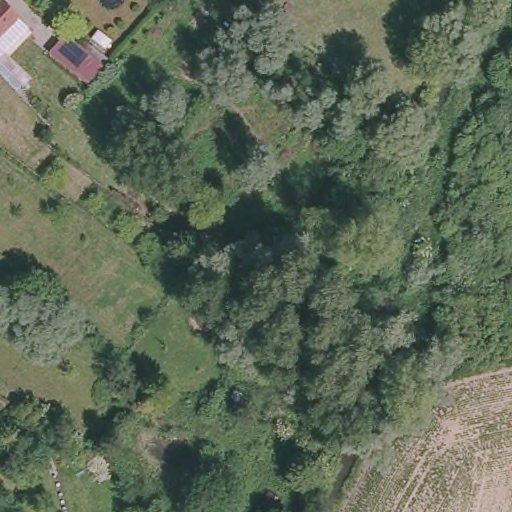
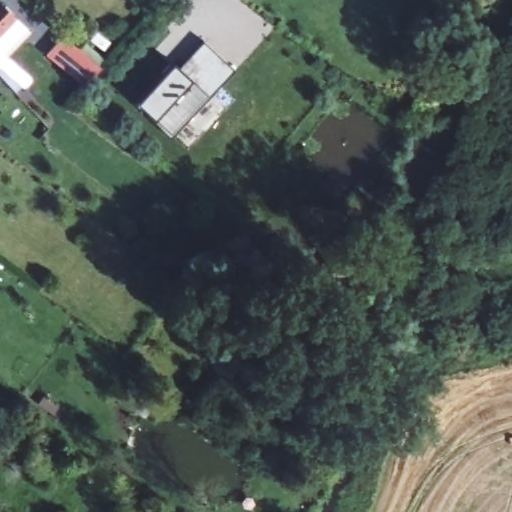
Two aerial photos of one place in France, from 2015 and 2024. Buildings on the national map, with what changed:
unchanged [(0,3),(15,15),(22,22),(0,46),(0,3)]
unchanged [(65,37),(78,46),(84,40),(109,61),(87,85),(50,56),(65,37)]
new [(219,85),(217,84),(170,133),(150,115),(149,116),(134,102),(163,73),(161,71),(169,63),(175,69),(204,40),(234,70),(219,85)]
unchanged [(12,83),(0,71),(0,59),(19,76),(12,83)]

